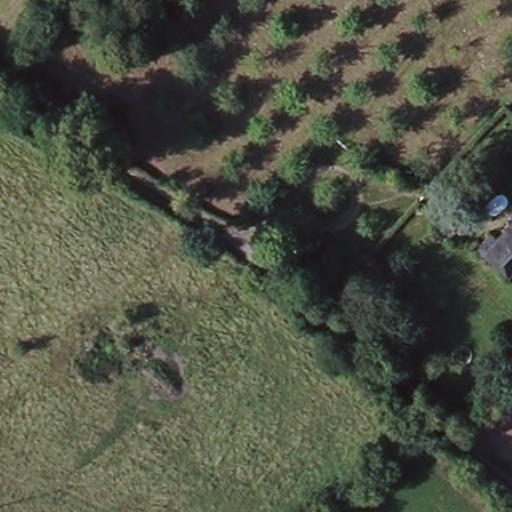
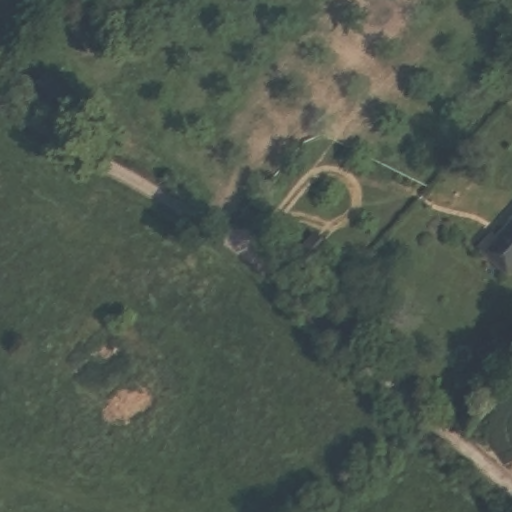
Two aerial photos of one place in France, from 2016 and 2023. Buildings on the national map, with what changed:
unchanged [(32,83),(48,69),(81,102),(66,117),(32,83)]
unchanged [(477,251),(492,236),(500,244),(512,231),(512,271),(506,277),(477,251)]
unchanged [(285,254),(306,234),(318,243),(298,263),(285,254)]

